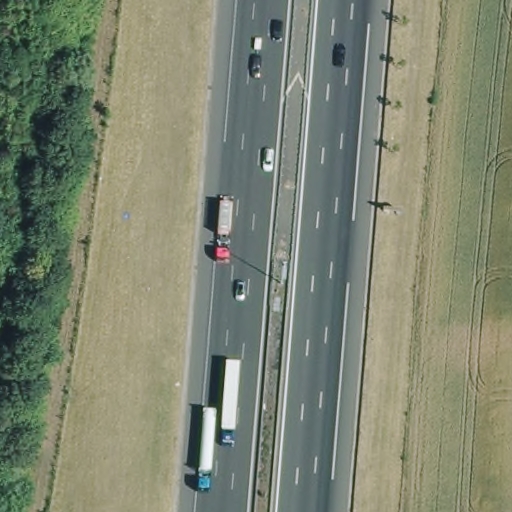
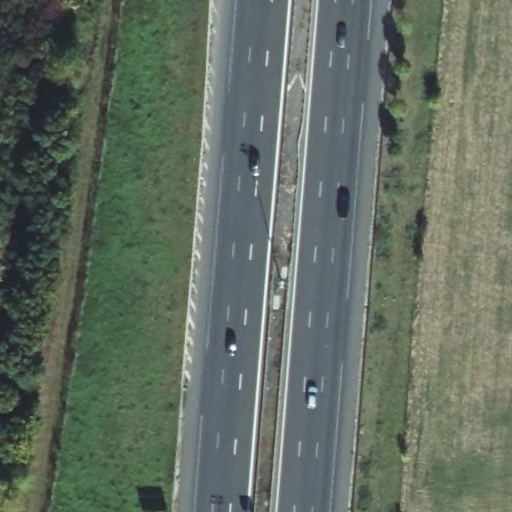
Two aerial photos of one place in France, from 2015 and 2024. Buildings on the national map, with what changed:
[]

